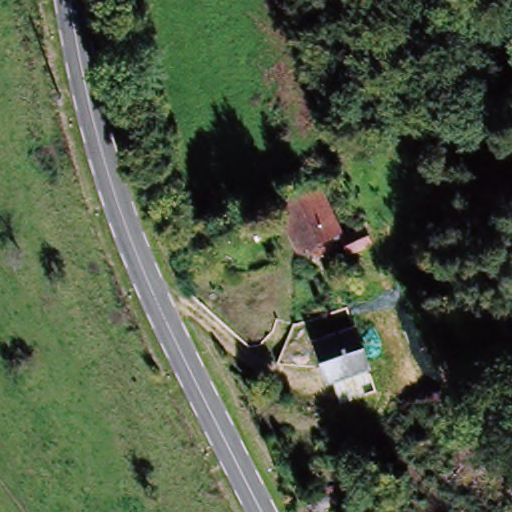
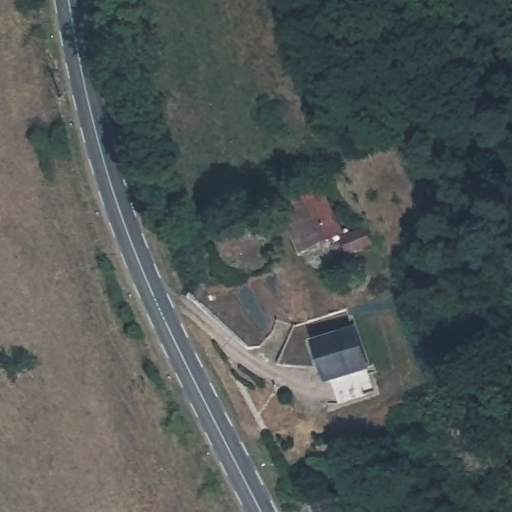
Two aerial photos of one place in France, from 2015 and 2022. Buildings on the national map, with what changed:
unchanged [(336,242),(296,257),(276,207),(315,192),(336,242)]
unchanged [(371,363),(331,379),(316,342),(356,327),(371,363)]
unchanged [(328,485),(303,498),(294,482),(319,468),(328,485)]

